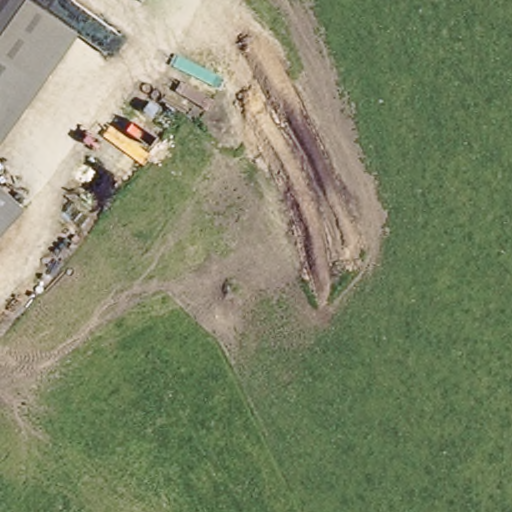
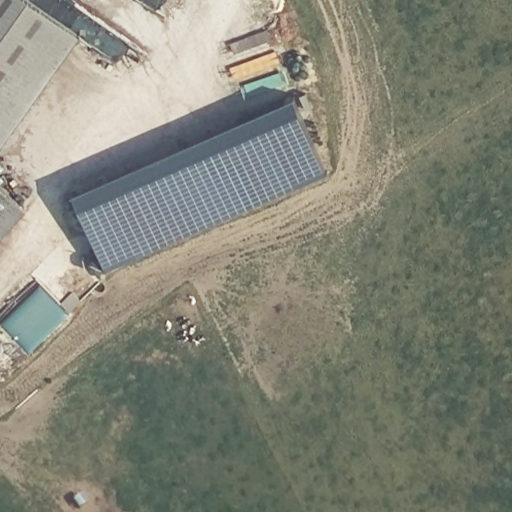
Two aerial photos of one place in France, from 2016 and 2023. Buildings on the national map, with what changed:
unchanged [(0,139),(0,0),(22,0),(71,36),(0,139)]
new [(289,96),(323,173),(102,269),(68,193),(289,96)]
unchanged [(0,232),(0,187),(22,206),(0,232)]

